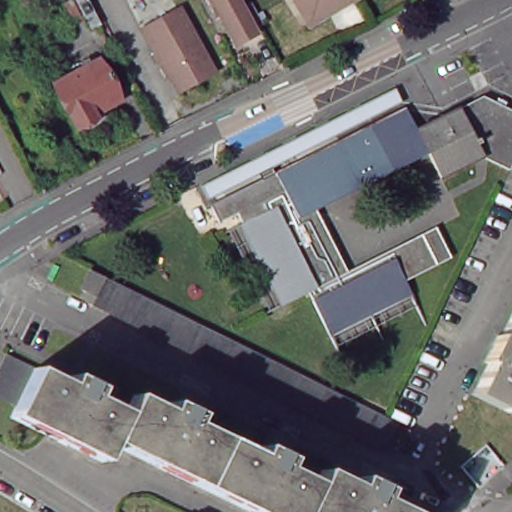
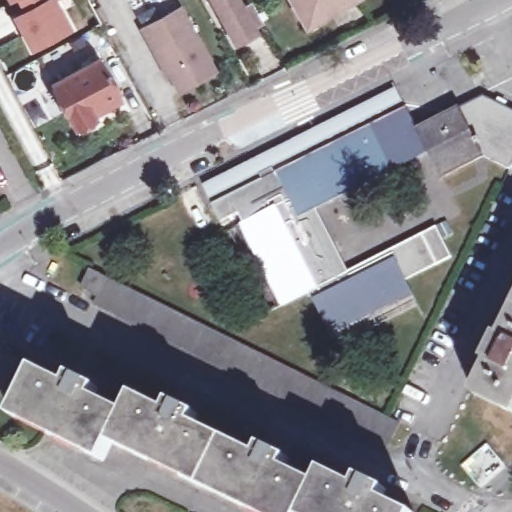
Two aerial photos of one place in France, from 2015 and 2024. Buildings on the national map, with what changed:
new [(9,4),(7,0),(16,0),(9,4)]
new [(22,11),(17,0),(58,0),(73,30),(31,53),(12,17),(22,11)]
demolished [(78,0),(88,0),(100,23),(92,27),(78,0)]
unchanged [(256,27),(238,36),(219,0),(242,0),(256,27)]
unchanged [(323,20),(311,0),(358,0),(323,20)]
unchanged [(181,11),(213,69),(178,88),(165,64),(162,65),(145,32),(181,11)]
unchanged [(103,107),(109,118),(80,134),(52,84),(100,58),(122,98),(103,107)]
unchanged [(401,88),(408,102),(280,166),(279,164),(266,171),(267,173),(217,198),(210,184),(401,88)]
unchanged [(279,164),(280,166),(282,171),(411,108),(422,130),(491,97),(512,107),(512,172),(489,160),(446,180),(435,157),(324,211),(325,213),(355,273),(428,237),(430,241),(444,268),(413,283),(419,296),(352,329),(338,336),(316,292),(290,304),(262,253),(247,223),(251,221),(246,212),(228,221),(220,205),(270,178),(267,173),(266,171),(279,164)]
unchanged [(82,269),(385,414),(396,419),(382,447),(88,306),(92,297),(73,288),(82,269)]
unchanged [(475,391),(490,361),(487,359),(500,333),(503,335),(512,317),(512,409),(475,391)]
unchanged [(405,512),(252,512),(116,446),(107,464),(15,420),(17,415),(0,407),(0,390),(13,361),(71,388),(75,381),(101,393),(98,401),(130,417),(138,401),(171,417),(176,409),(200,421),(197,430),(260,460),(265,452),(290,463),(286,472),(321,489),(327,474),(358,489),(362,480),(387,492),(383,500),(405,512)]

